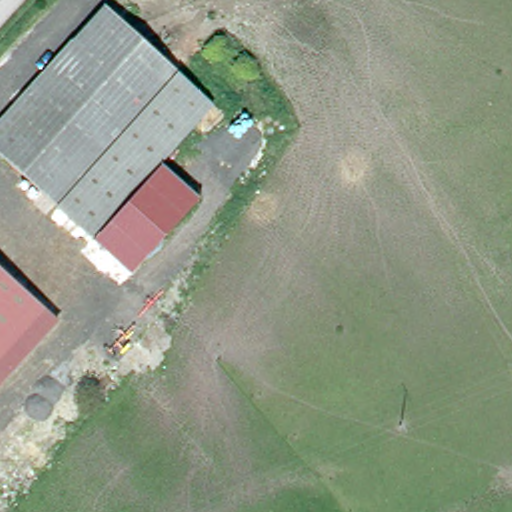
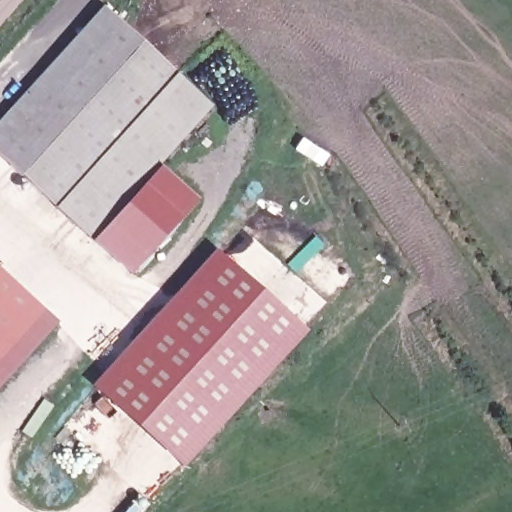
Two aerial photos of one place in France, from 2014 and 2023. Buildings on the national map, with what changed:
unchanged [(95,238),(0,151),(0,126),(108,5),(217,104),(162,164),(95,238)]
unchanged [(162,164),(199,197),(132,271),(95,238),(162,164)]
new [(306,331),(182,467),(90,386),(215,248),(306,331)]
unchanged [(0,267),(60,322),(0,388),(0,267)]

